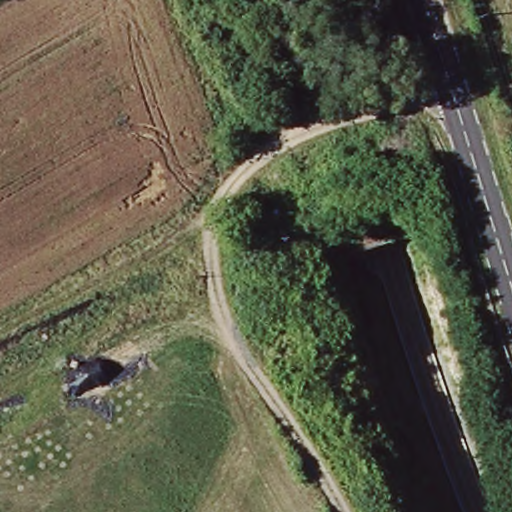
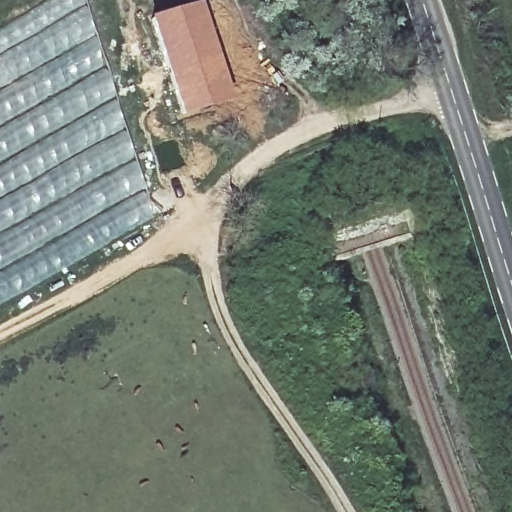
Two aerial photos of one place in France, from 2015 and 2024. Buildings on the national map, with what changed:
new [(87,0),(98,34),(72,47),(0,89),(0,29),(47,0),(87,0)]
new [(202,0),(232,102),(180,118),(149,16),(202,0)]
new [(98,34),(109,64),(79,79),(0,124),(0,89),(72,47),(98,34)]
new [(109,64),(119,96),(102,104),(0,161),(0,124),(79,79),(109,64)]
new [(119,96),(152,193),(162,212),(25,291),(0,304),(0,161),(102,104),(119,96)]

